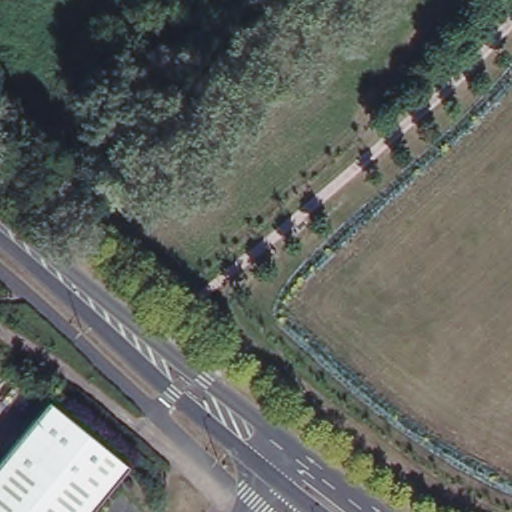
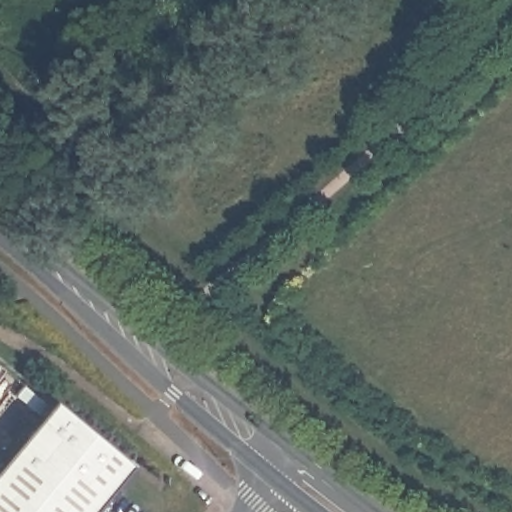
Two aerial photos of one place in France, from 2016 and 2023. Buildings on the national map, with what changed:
unchanged [(0,465),(54,400),(134,465),(95,512),(0,512),(0,465)]

